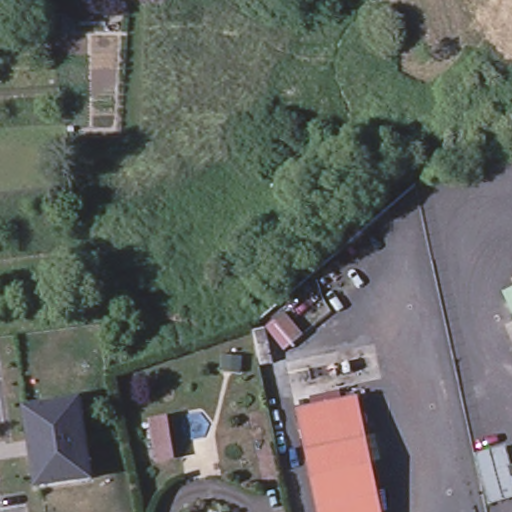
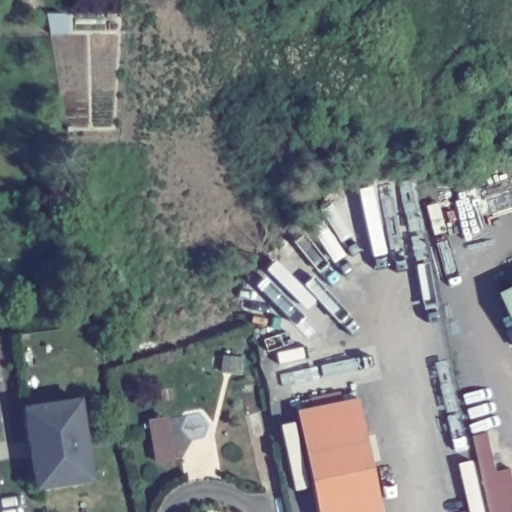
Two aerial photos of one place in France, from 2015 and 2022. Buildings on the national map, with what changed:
unchanged [(505,300),(512,296),(512,316),(505,300)]
unchanged [(495,398),(506,441),(477,448),(465,407),(495,398)]
unchanged [(38,477),(30,422),(27,410),(40,408),(82,402),(87,434),(82,435),(85,448),(90,447),(95,481),(53,487),(40,489),(38,477)]
unchanged [(382,512),(318,512),(297,416),(359,402),(382,512)]
unchanged [(169,418),(171,418),(179,462),(155,467),(145,422),(169,418)]
unchanged [(487,511),(477,460),(506,453),(509,453),(512,468),(512,505),(487,511)]

